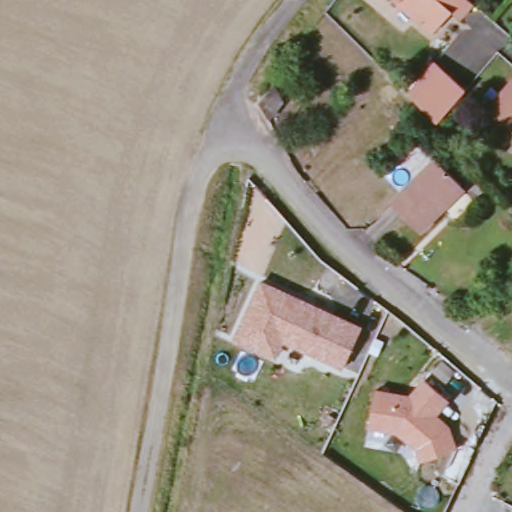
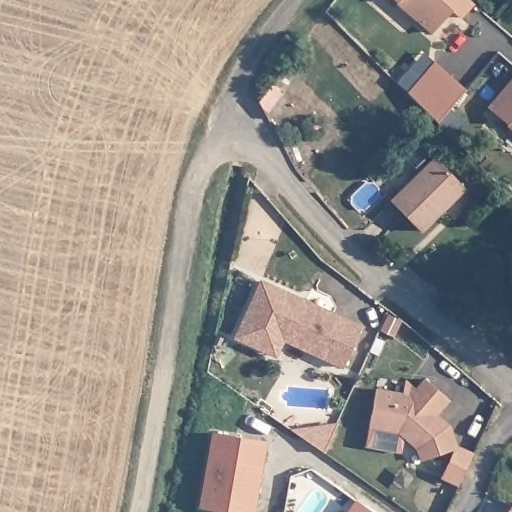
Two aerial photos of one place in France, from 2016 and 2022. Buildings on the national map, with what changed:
unchanged [(451,10),(432,32),(395,0),(470,0),(472,2),(459,17),(451,10)]
unchanged [(440,127),(410,93),(437,62),(468,91),(440,127)]
unchanged [(512,72),(512,128),(485,104),(512,72)]
unchanged [(258,104),(272,83),(272,84),(283,101),(268,120),(258,104)]
unchanged [(432,154),(457,178),(435,200),(439,203),(415,226),(387,198),(432,154)]
unchanged [(345,369),(285,342),(277,360),(234,340),(261,281),(365,327),(345,369)]
unchanged [(440,416),(450,425),(458,450),(422,463),(417,450),(401,435),(371,429),(377,390),(413,394),(426,379),(451,401),(440,416)]
new [(200,506),(212,432),(267,442),(256,512),(232,512),(200,506)]
new [(356,499),(374,512),(346,512),(356,499)]

